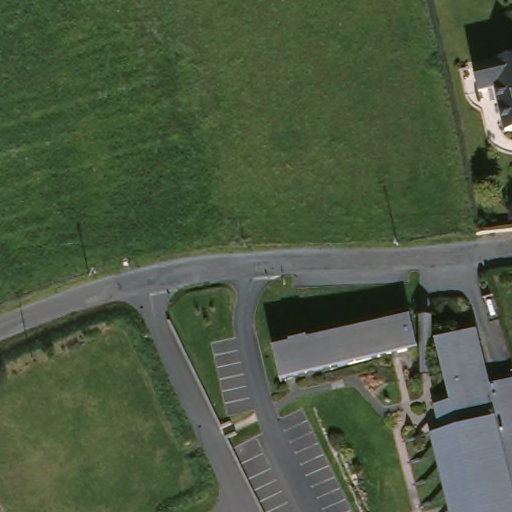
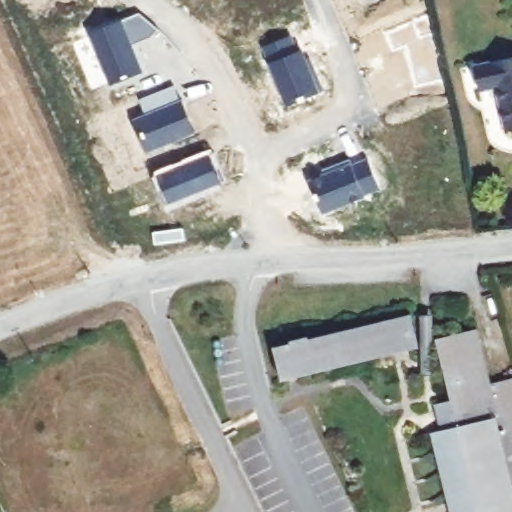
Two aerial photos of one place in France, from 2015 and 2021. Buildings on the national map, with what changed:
new [(140,15),(160,31),(154,40),(138,45),(149,71),(144,73),(144,74),(113,87),(92,35),(140,15)]
new [(292,36),(298,53),(303,51),(310,69),(314,66),(324,93),(289,107),(265,48),(292,36)]
unchanged [(512,133),(504,135),(493,91),(475,94),(470,71),(512,61),(512,133)]
new [(147,117),(141,101),(177,86),(197,135),(150,154),(136,121),(147,117)]
new [(210,156),(218,175),(210,179),(213,187),(171,205),(159,177),(210,156)]
new [(325,172),(334,168),(352,161),(354,166),(370,161),(382,190),(366,196),(366,198),(324,215),(311,182),(326,176),(325,172)]
unchanged [(415,312),(422,343),(287,376),(280,344),(415,312)]
unchanged [(436,312),(439,374),(425,375),(423,312),(436,312)]
unchanged [(447,427),(440,400),(456,396),(441,337),(482,327),(496,382),(512,378),(512,512),(456,512),(436,430),(447,427)]

